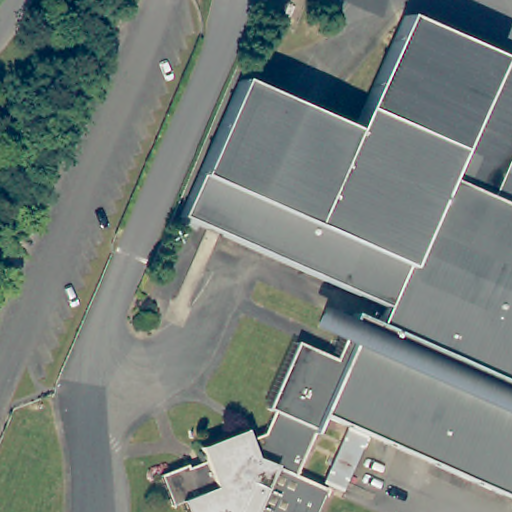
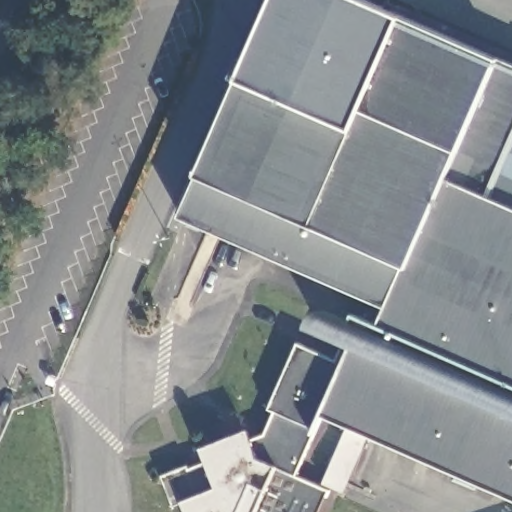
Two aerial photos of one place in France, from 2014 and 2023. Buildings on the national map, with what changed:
new [(404,16),(402,22),(497,62),(512,69),(512,82),(408,37),(401,34),(358,132),(245,81),(277,0),(369,0),(404,16)]
unchanged [(426,461),(435,440),(474,341),(472,340),(443,327),(391,303),(388,307),(222,233),(184,217),(245,81),(358,132),(401,34),(408,37),(512,81),(512,499),(426,461)]
unchanged [(443,327),(472,340),(474,341),(435,440),(426,461),(326,416),(298,475),(332,490),(322,512),(190,512),(187,503),(177,507),(164,470),(189,461),(192,468),(210,462),(204,445),(250,429),(253,437),(268,432),(278,410),(272,407),(302,342),(340,360),(350,340),(320,327),(328,307),(353,319),(357,314),(381,325),(390,308),(388,307),(391,303),(443,327)]

